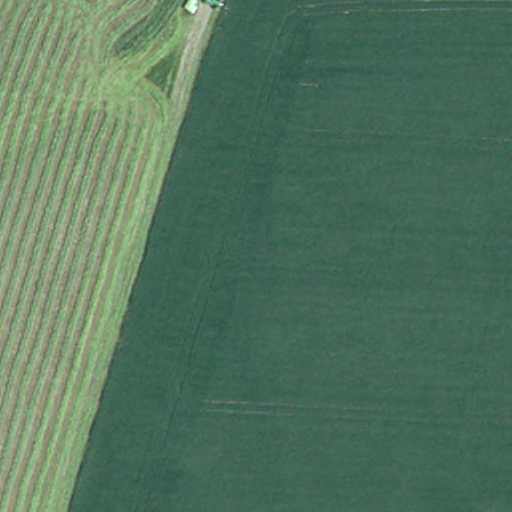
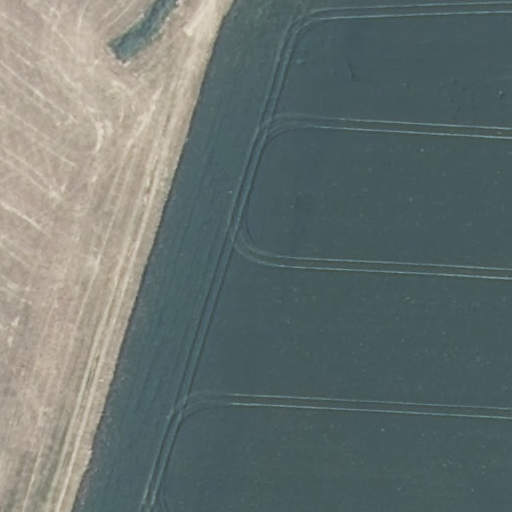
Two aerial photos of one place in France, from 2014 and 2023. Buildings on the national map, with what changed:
[]

